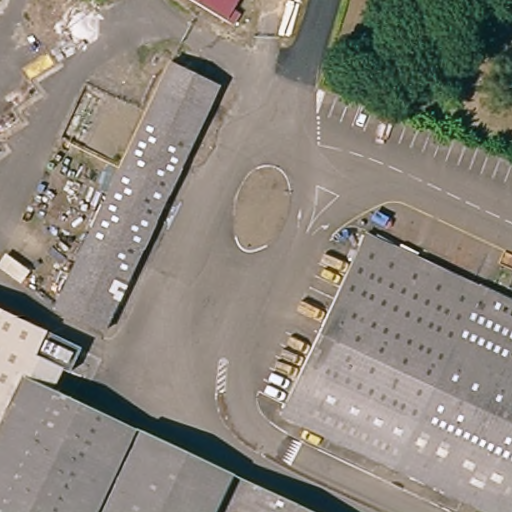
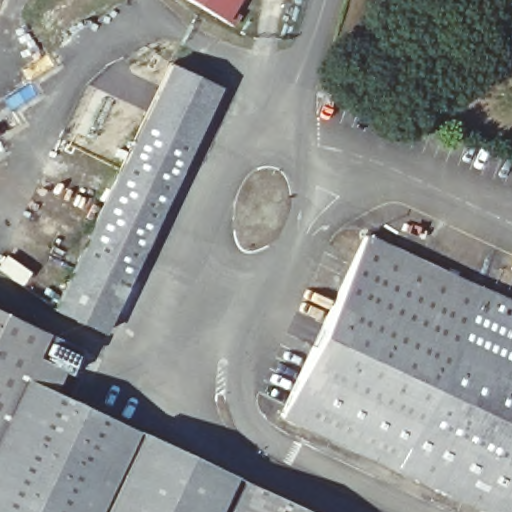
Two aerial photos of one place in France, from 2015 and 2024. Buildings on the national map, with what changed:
unchanged [(189,0),(239,0),(226,22),(189,0)]
unchanged [(102,331),(54,308),(169,63),(218,86),(102,331)]
unchanged [(512,512),(487,512),(280,415),(364,234),(512,304),(512,512)]
unchanged [(80,348),(78,353),(69,373),(34,357),(24,378),(232,475),(215,512),(0,512),(0,311),(80,348)]
unchanged [(30,376),(37,362),(57,371),(50,385),(30,376)]
unchanged [(240,478),(311,512),(224,512),(240,478)]

